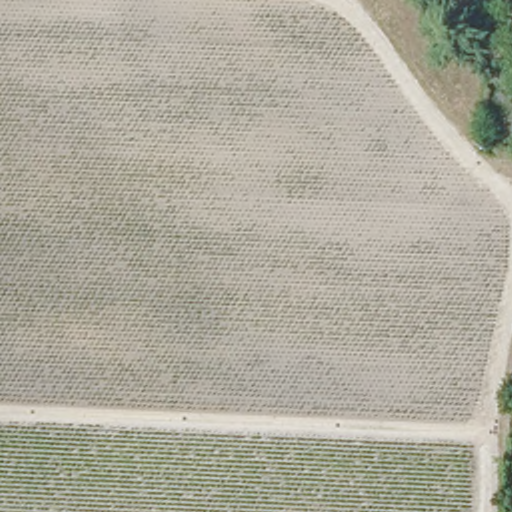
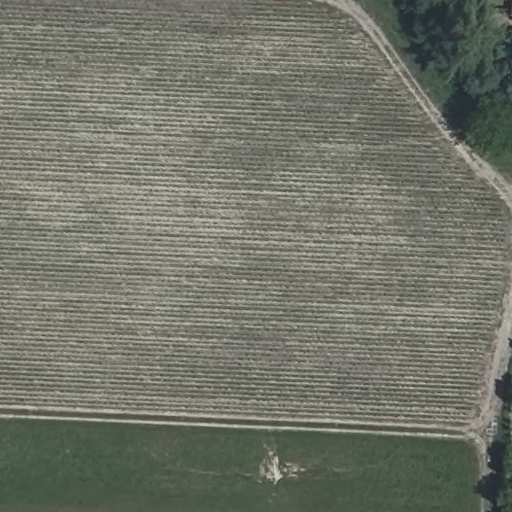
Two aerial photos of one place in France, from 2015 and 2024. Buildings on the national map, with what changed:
unchanged [(502,24),(504,17),(506,13),(512,14),(512,20),(511,25),(502,24)]

